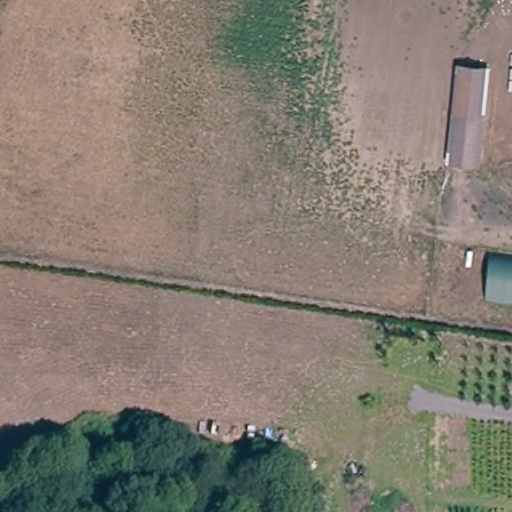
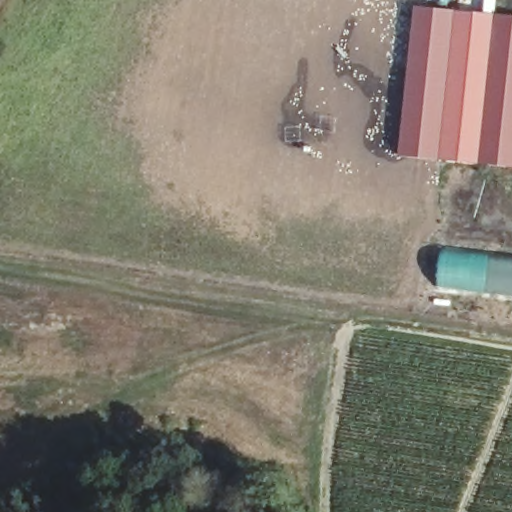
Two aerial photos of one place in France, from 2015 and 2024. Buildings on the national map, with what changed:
new [(512,169),(400,157),(415,6),(512,16),(512,169)]
demolished [(488,63),(479,165),(452,163),(463,60),(488,63)]
new [(442,247),(512,256),(512,296),(437,286),(442,247)]
demolished [(512,305),(489,303),(493,254),(512,257),(512,305)]

